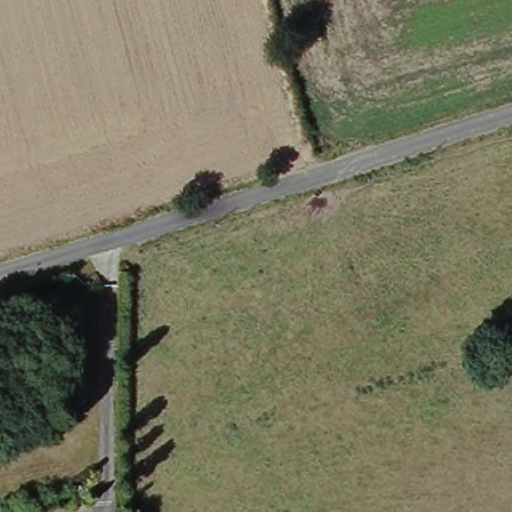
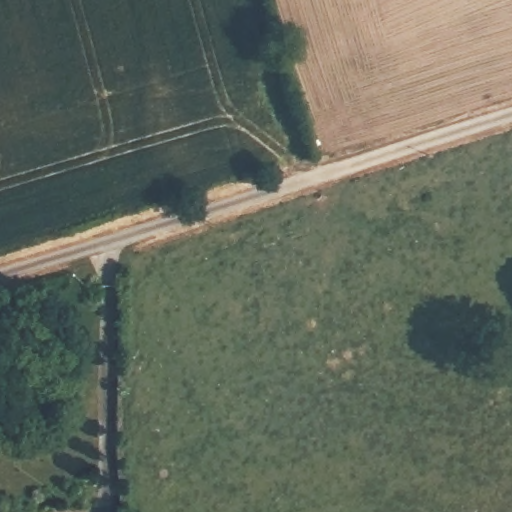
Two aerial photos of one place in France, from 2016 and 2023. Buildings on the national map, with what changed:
[]

